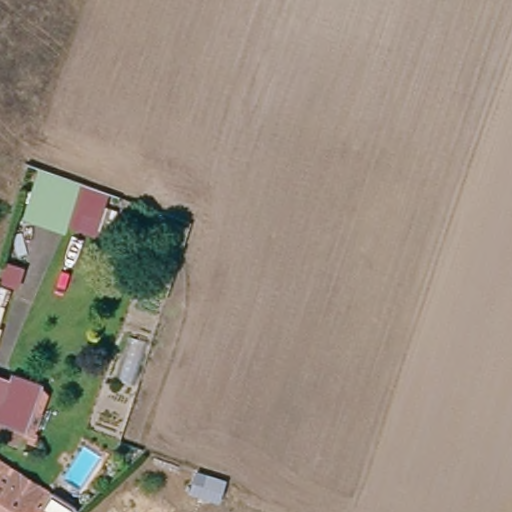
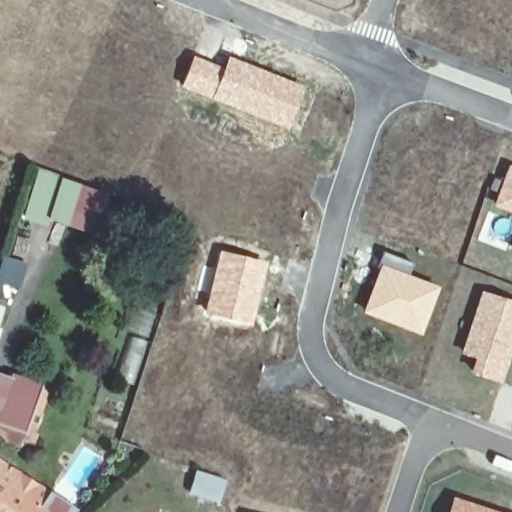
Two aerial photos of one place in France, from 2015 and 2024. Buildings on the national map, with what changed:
new [(192,55),(222,67),(210,100),(179,87),(192,55)]
new [(222,67),(227,56),(303,85),(287,130),(210,100),(222,67)]
new [(512,166),(512,215),(491,206),(507,165),(512,166)]
new [(95,234),(66,225),(63,234),(20,219),(37,167),(107,194),(95,234)]
demolished [(31,212),(39,187),(76,197),(72,224),(31,212)]
new [(512,242),(512,252),(509,250),(512,242)]
new [(219,250),(267,262),(251,325),(204,314),(219,250)]
new [(383,251),(411,262),(407,274),(438,286),(420,336),(361,313),(383,251)]
new [(512,300),(512,346),(500,383),(468,373),(472,359),(458,354),(480,290),(512,300)]
new [(40,389),(47,396),(32,445),(25,442),(22,450),(0,440),(0,375),(9,378),(11,373),(41,385),(40,389)]
demolished [(21,432),(19,431),(14,445),(0,440),(0,400),(29,410),(21,432)]
unchanged [(39,488),(27,506),(36,512),(0,512),(0,463),(39,488)]
new [(195,468),(225,480),(218,501),(187,490),(195,468)]
new [(453,499),(491,512),(449,512),(453,499)]

